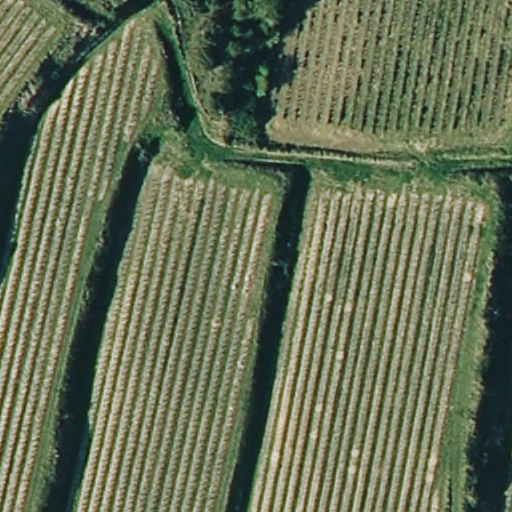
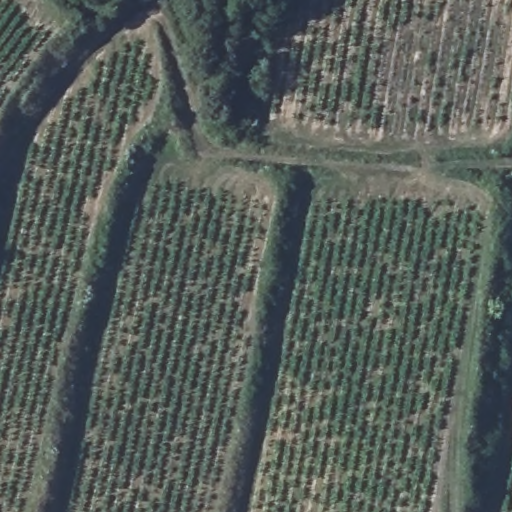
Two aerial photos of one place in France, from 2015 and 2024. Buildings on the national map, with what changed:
[]

